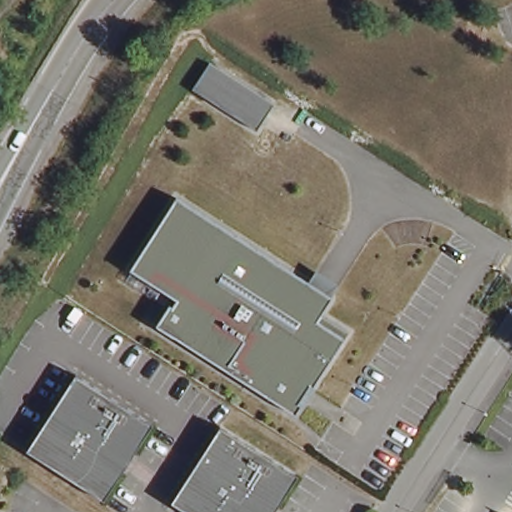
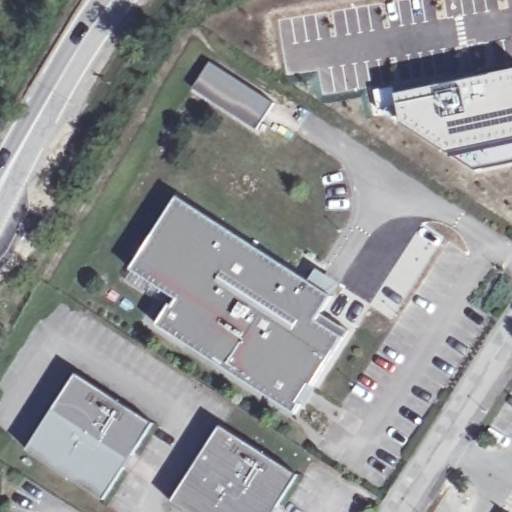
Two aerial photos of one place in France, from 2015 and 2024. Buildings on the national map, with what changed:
unchanged [(272,105),(255,133),(195,91),(213,65),(272,105)]
new [(393,92),(457,80),(512,67),(512,164),(475,172),(423,139),(397,120),(398,119),(397,114),(395,105),(377,109),(372,89),(392,86),(393,92)]
unchanged [(295,415),(155,325),(168,305),(170,307),(175,300),(172,299),(128,270),(175,199),(331,299),(320,315),(347,333),(312,388),(301,406),(295,415)]
unchanged [(153,424),(103,500),(25,450),(75,374),(153,424)]
unchanged [(297,476),(274,512),(186,512),(170,502),(220,426),(297,476)]
unchanged [(500,511),(501,512),(499,512),(500,511)]

